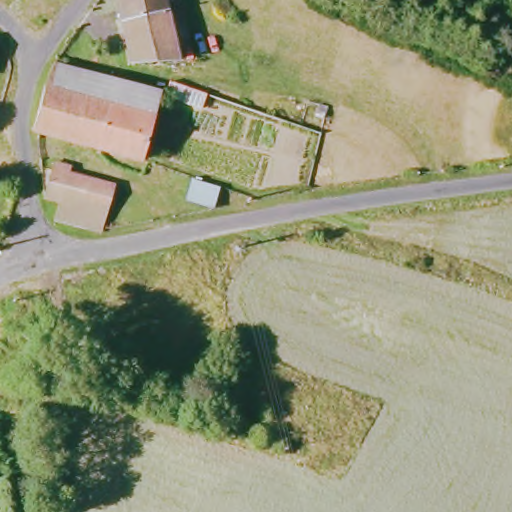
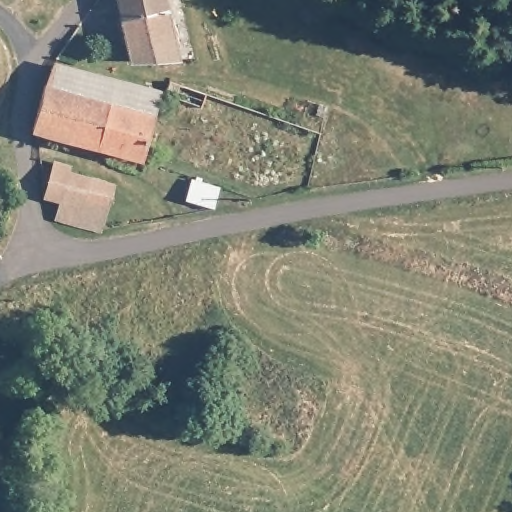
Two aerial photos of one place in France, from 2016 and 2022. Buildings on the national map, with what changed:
unchanged [(180,63),(135,65),(122,0),(167,0),(180,63)]
unchanged [(142,161),(40,133),(57,70),(58,69),(162,98),(146,162),(142,161)]
unchanged [(64,204),(46,198),(56,166),(72,171),(71,176),(103,186),(101,200),(111,203),(102,230),(101,234),(58,221),(60,216),(64,204)]

